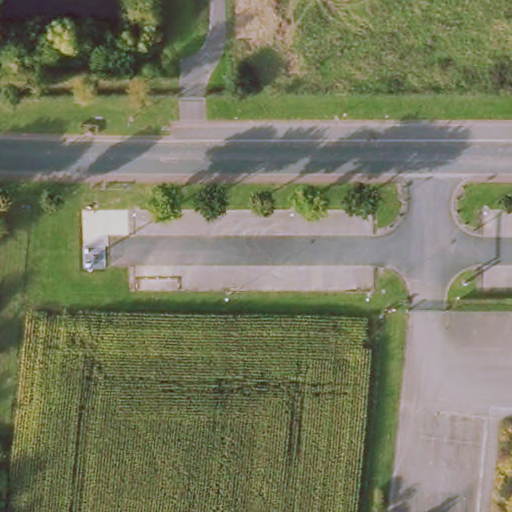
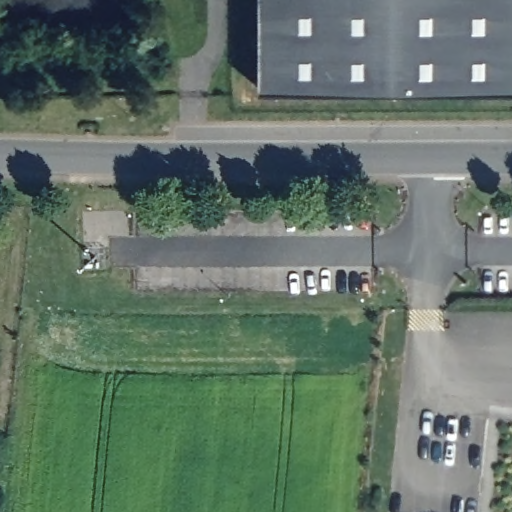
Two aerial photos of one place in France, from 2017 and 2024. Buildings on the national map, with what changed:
new [(255,99),(255,0),(512,0),(512,99),(255,99)]

